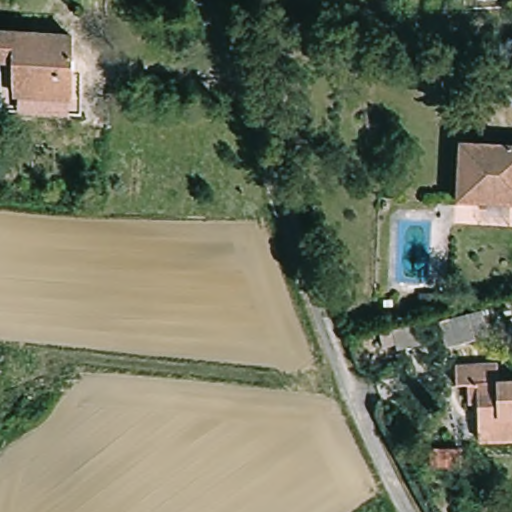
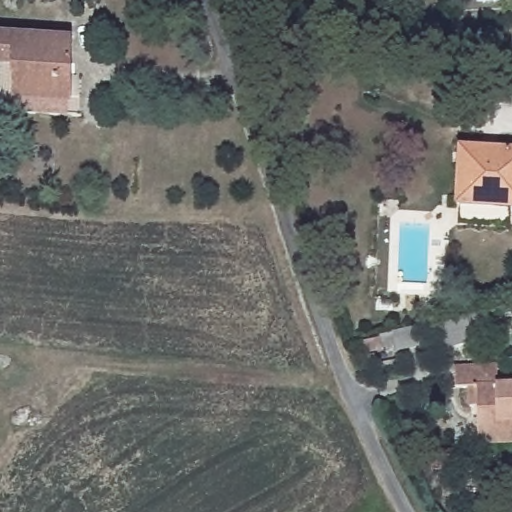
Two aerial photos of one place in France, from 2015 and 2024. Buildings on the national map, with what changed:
unchanged [(70,101),(13,98),(14,64),(0,64),(0,35),(71,38),(70,101)]
unchanged [(491,67),(512,72),(512,107),(484,100),(491,67)]
unchanged [(459,147),(512,150),(512,208),(456,205),(459,147)]
unchanged [(435,308),(417,307),(418,294),(435,295),(435,308)]
unchanged [(487,338),(444,348),(437,323),(481,313),(487,338)]
unchanged [(482,434),(482,407),(472,407),(471,386),(460,386),(459,368),(501,367),(502,385),(512,385),(512,444),(483,444),(482,434)]
unchanged [(429,451),(445,450),(445,470),(429,470),(429,451)]

